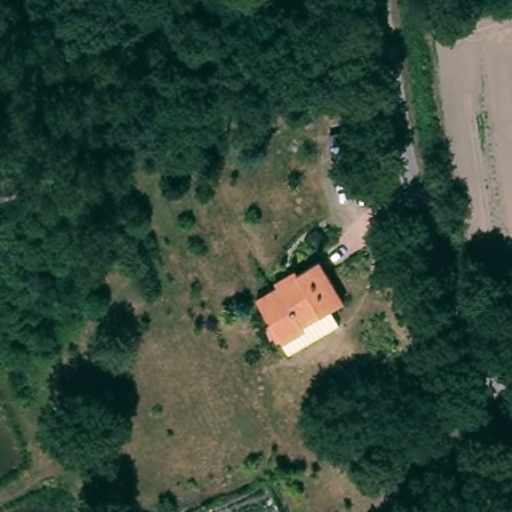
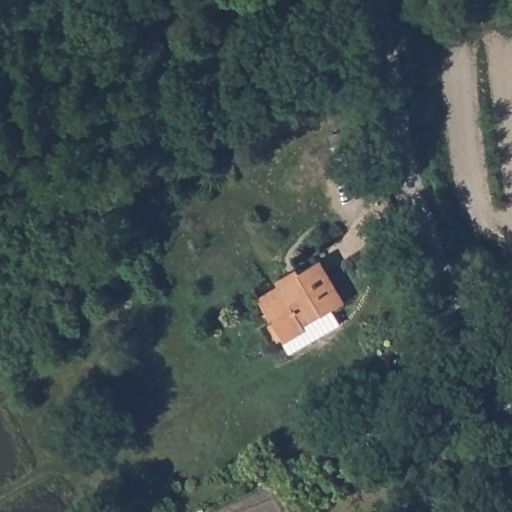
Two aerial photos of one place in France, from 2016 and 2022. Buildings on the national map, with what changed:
unchanged [(367,125),(380,173),(341,180),(330,136),(367,125)]
unchanged [(338,308),(326,314),(333,328),(283,354),(255,297),(278,287),(274,279),(287,272),(297,267),(301,275),(317,267),(338,308)]

